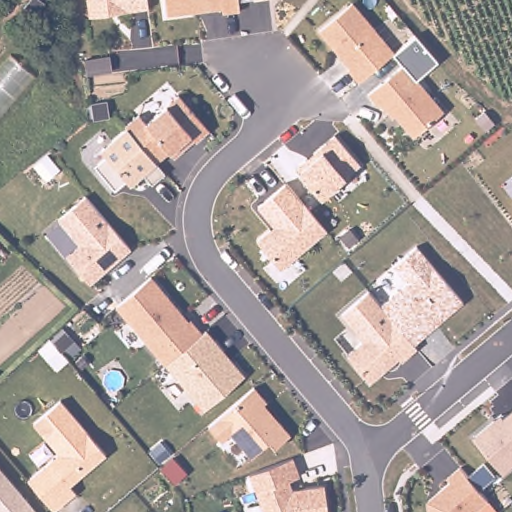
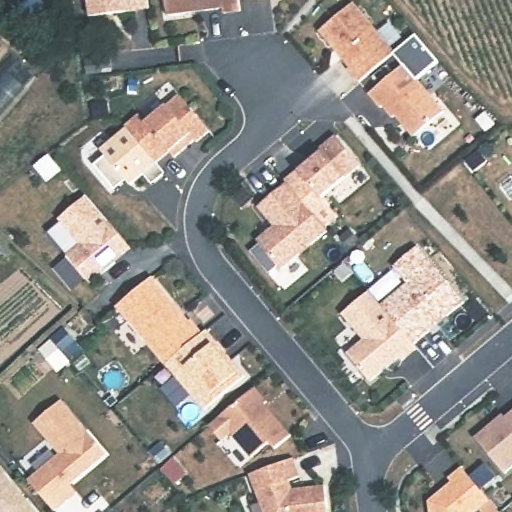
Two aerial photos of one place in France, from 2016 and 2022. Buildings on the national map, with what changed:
unchanged [(150,10),(89,17),(86,0),(149,0),(150,10)]
unchanged [(241,7),(242,12),(223,14),(222,9),(169,16),(166,0),(240,0),(241,7)]
unchanged [(353,3),(395,52),(361,80),(358,83),(347,70),(350,67),(319,32),(353,3)]
unchanged [(0,123),(0,71),(11,57),(38,78),(0,123)]
unchanged [(404,65),(444,112),(414,137),(396,117),(394,119),(382,106),(380,108),(369,95),(404,65)]
unchanged [(125,130),(124,127),(139,114),(146,121),(167,105),(168,106),(180,95),(210,132),(197,143),(195,141),(175,158),(170,153),(169,151),(155,164),(125,130)]
unchanged [(155,164),(164,173),(152,183),(143,174),(130,185),(126,181),(116,190),(94,166),(105,156),(101,151),(125,130),(155,164)]
unchanged [(321,153),(319,150),(336,136),(361,166),(348,178),(321,200),(297,172),(321,153)]
unchanged [(328,232),(281,270),(256,241),(273,227),(257,208),(287,183),(328,232)]
unchanged [(132,249),(91,283),(66,255),(79,244),(58,220),(86,196),(132,249)]
unchanged [(409,284),(394,268),(415,251),(462,305),(414,344),(381,306),(409,284)]
unchanged [(152,277),(202,333),(165,365),(116,308),(152,277)]
unchanged [(369,293),(381,306),(414,344),(418,348),(402,361),(399,357),(370,382),(347,354),(364,340),(342,315),(369,293)]
unchanged [(202,333),(206,330),(245,377),(204,410),(165,365),(202,333)]
unchanged [(254,389),(265,403),(264,404),(291,435),(275,449),(268,443),(251,458),(231,435),(222,442),(209,426),(254,389)]
unchanged [(30,480),(61,454),(35,423),(62,400),(108,454),(71,485),(78,492),(55,511),(30,480)]
unchanged [(512,413),(512,467),(504,473),(475,438),(502,414),(505,418),(512,413)]
unchanged [(300,477),(289,481),(293,492),(326,486),(328,512),(262,512),(248,475),(294,458),(300,477)]
unchanged [(0,512),(0,468),(37,512),(0,512)]
unchanged [(448,479),(461,468),(489,502),(477,512),(428,512),(427,501),(451,483),(448,479)]

